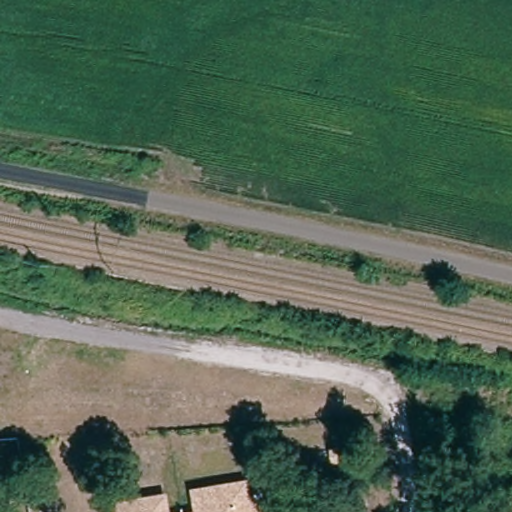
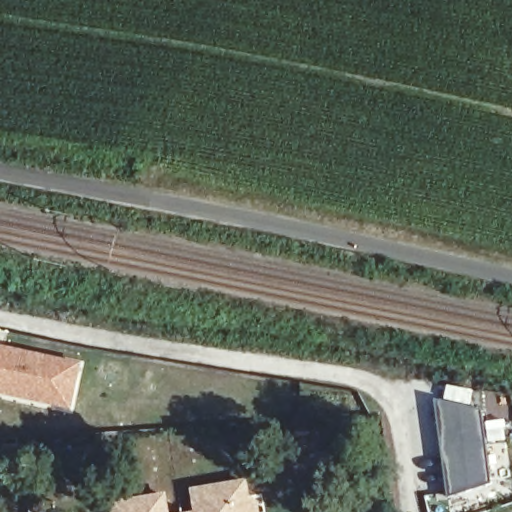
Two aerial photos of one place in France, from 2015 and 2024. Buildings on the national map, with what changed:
new [(0,345),(82,363),(72,410),(0,395),(0,345)]
new [(449,497),(435,399),(482,409),(492,483),(449,497)]
new [(510,440),(510,423),(512,423),(512,440),(510,440)]
unchanged [(303,470),(303,448),(354,446),(356,467),(303,470)]
unchanged [(194,510),(190,487),(250,479),(253,495),(261,503),(262,512),(186,512),(194,510)]
unchanged [(168,490),(172,512),(113,512),(110,501),(168,490)]

